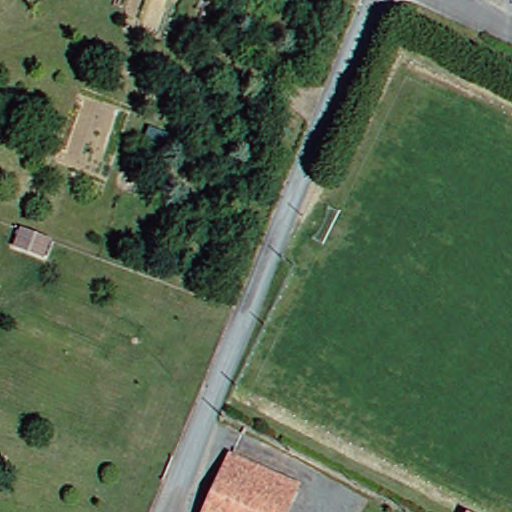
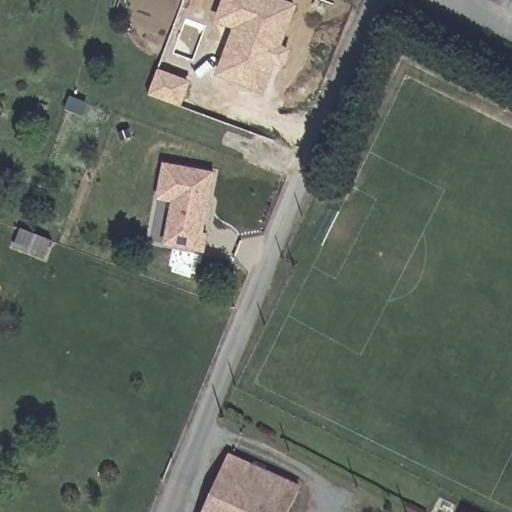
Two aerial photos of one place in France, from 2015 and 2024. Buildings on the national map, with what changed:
new [(283,64),(274,60),(263,90),(220,74),(237,27),(218,20),(226,0),(277,0),(294,6),(279,47),(288,50),(283,64)]
new [(159,71),(189,82),(181,106),(150,95),(159,71)]
new [(174,202),(159,199),(165,165),(215,174),(203,235),(208,235),(205,252),(178,246),(166,245),(169,230),(174,202)]
unchanged [(45,237),(37,258),(11,249),(19,227),(45,237)]
unchanged [(224,449),(300,480),(290,501),(215,470),(224,449)]
unchanged [(197,512),(215,470),(290,501),(285,512),(197,512)]
unchanged [(470,512),(462,512),(463,509),(470,512)]

